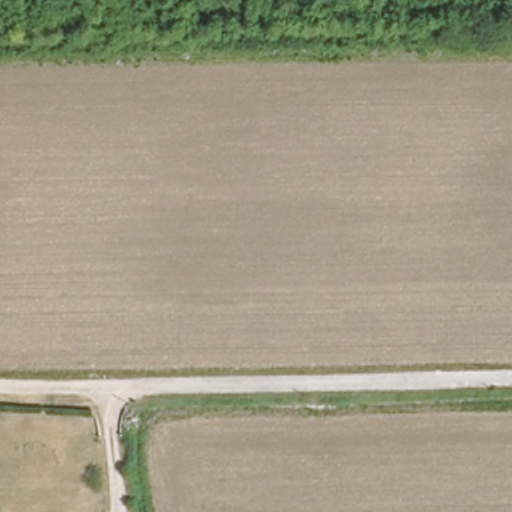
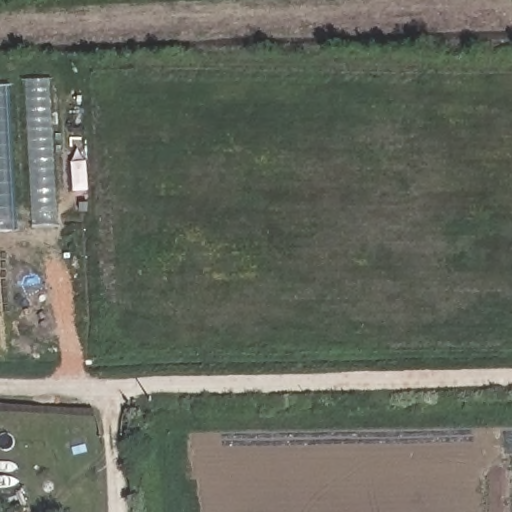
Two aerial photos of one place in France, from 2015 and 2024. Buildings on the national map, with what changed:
new [(48,79),(58,226),(33,228),(23,81),(48,79)]
new [(18,231),(0,231),(0,86),(9,86),(18,231)]

